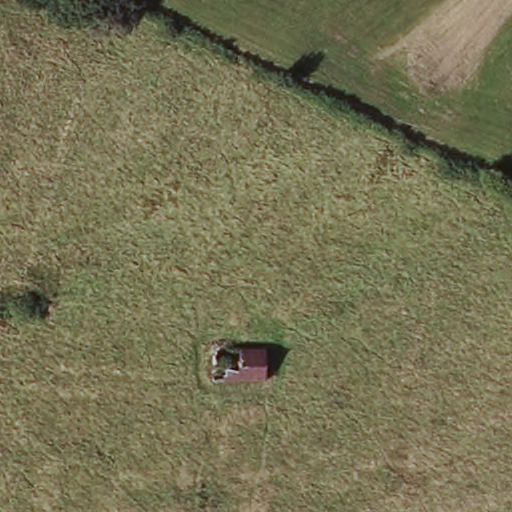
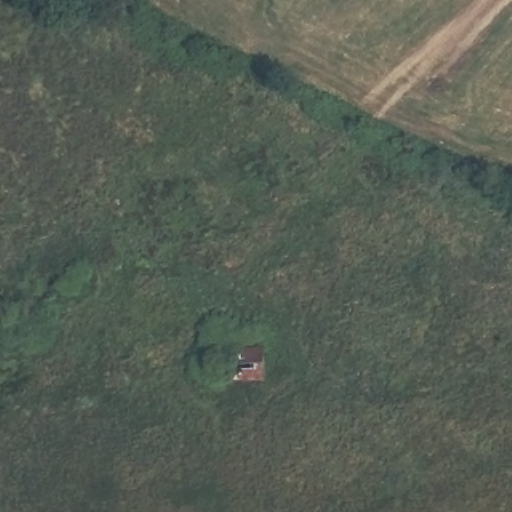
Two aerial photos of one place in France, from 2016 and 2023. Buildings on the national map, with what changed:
unchanged [(266,354),(267,384),(216,384),(216,355),(266,354)]

